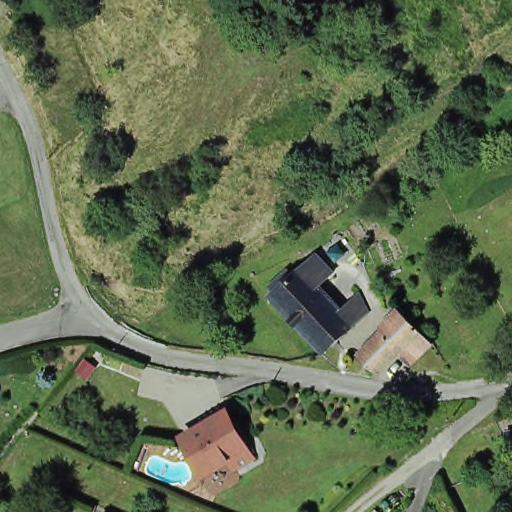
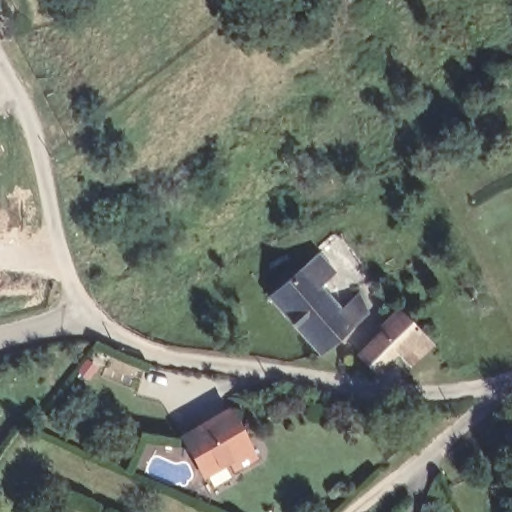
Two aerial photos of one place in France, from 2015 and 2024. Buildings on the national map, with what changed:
unchanged [(364,294),(370,309),(321,355),(297,327),(269,295),(301,264),(318,250),(321,255),(337,273),(336,274),(321,287),(344,310),(364,294)]
unchanged [(410,372),(398,359),(379,377),(359,355),(406,312),(424,335),(436,349),(410,372)]
unchanged [(199,475),(178,439),(196,428),(216,416),(221,413),(232,431),(248,459),(231,470),(206,485),(199,475)]
unchanged [(508,429),(512,428),(512,449),(508,429)]

